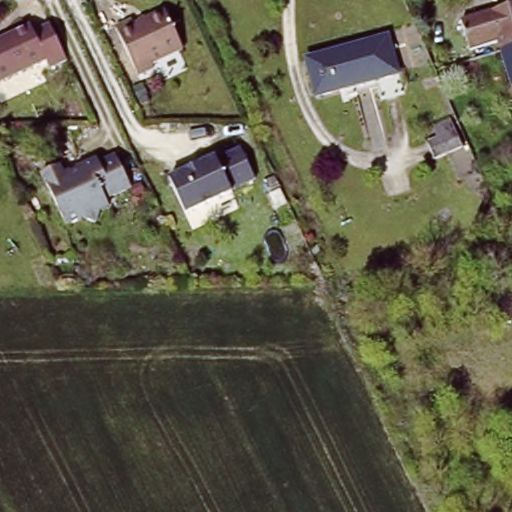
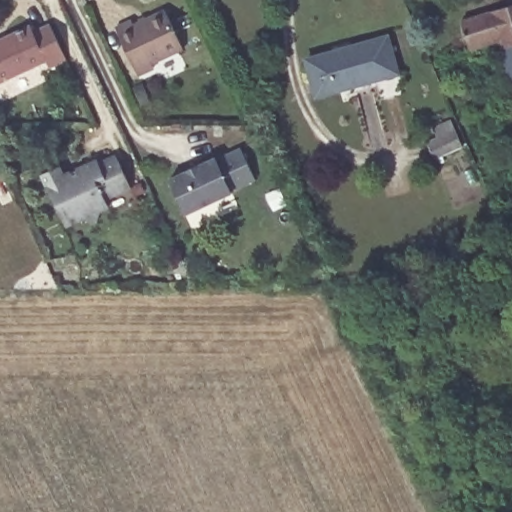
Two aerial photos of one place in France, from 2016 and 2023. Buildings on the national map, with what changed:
unchanged [(152,59),(154,64),(138,71),(116,24),(132,16),(134,21),(165,6),(183,44),(152,59)]
unchanged [(495,54),(492,44),(464,53),(455,24),(512,7),(512,109),(495,54)]
unchanged [(46,61),(0,83),(0,41),(7,38),(6,35),(30,24),(33,31),(50,23),(66,59),(49,68),(46,61)]
unchanged [(402,72),(379,78),(380,80),(381,87),(355,94),(353,88),(321,96),(311,60),(392,37),(402,72)]
unchanged [(143,89),(150,102),(134,110),(128,96),(143,89)]
unchanged [(435,159),(427,142),(438,137),(435,128),(451,121),(462,147),(435,159)]
unchanged [(255,178),(231,190),(232,192),(185,214),(169,179),(215,157),(216,160),(241,148),(255,178)]
unchanged [(131,183),(106,195),(110,202),(101,206),(96,219),(85,214),(67,222),(47,180),(98,156),(100,159),(117,151),(131,183)]

